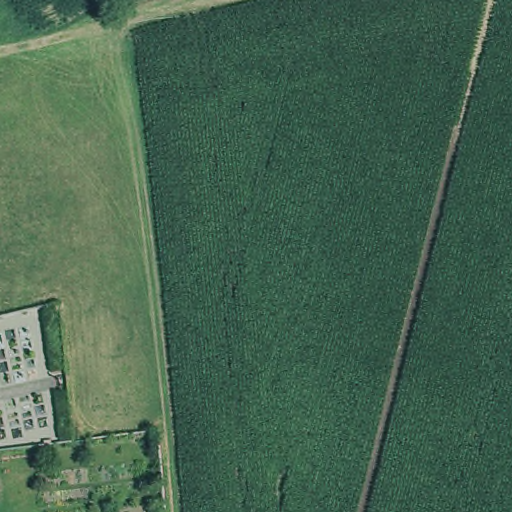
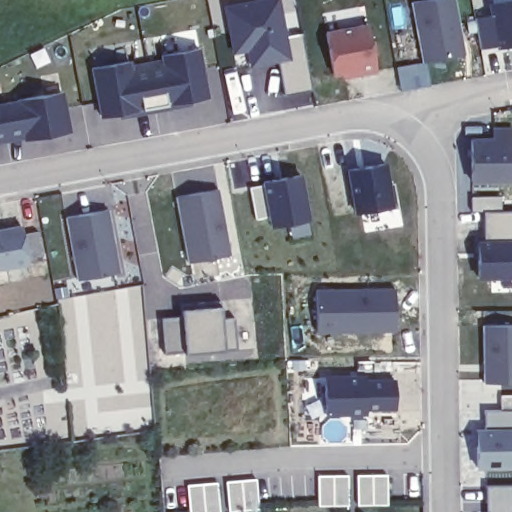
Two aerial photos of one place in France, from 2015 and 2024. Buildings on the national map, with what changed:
new [(310,89),(284,94),(278,62),(249,68),(245,52),(232,54),(222,4),(243,0),(280,0),(292,59),(294,65),(304,63),(310,89)]
new [(458,0),(467,52),(422,61),(414,3),(426,0),(458,0)]
new [(512,0),(512,47),(495,51),(489,4),(506,0),(512,0)]
new [(373,24),(380,71),(332,79),(329,35),(373,24)]
new [(200,48),(210,99),(100,122),(87,70),(200,48)]
new [(72,131),(0,144),(0,98),(67,87),(72,131)]
new [(470,183),(469,137),(494,136),(494,128),(512,128),(512,182),(470,183)]
new [(355,216),(347,170),(387,163),(395,209),(355,216)]
new [(312,216),(275,227),(273,218),(260,222),(250,183),(306,171),(312,216)]
new [(188,265),(175,199),(219,190),(232,256),(188,265)]
new [(80,281),(67,217),(108,210),(121,274),(80,281)]
new [(27,232),(42,228),(52,274),(34,279),(31,264),(0,270),(0,228),(25,221),(27,232)]
new [(477,279),(477,241),(512,240),(512,279),(477,279)]
new [(397,336),(316,338),(316,287),(395,286),(397,336)]
new [(167,358),(162,318),(182,316),(180,307),(220,303),(222,320),(234,318),(237,349),(167,358)]
new [(485,384),(483,326),(512,325),(512,383),(485,384)]
new [(400,418),(322,419),(324,375),(398,375),(400,418)]
new [(512,408),(512,468),(478,470),(478,426),(486,426),(487,410),(512,408)]
new [(388,475),(390,507),(359,504),(357,472),(388,475)]
new [(352,475),(352,507),(320,508),(320,475),(352,475)]
new [(259,476),(262,509),(230,511),(228,479),(259,476)]
new [(512,483),(512,512),(488,512),(487,485),(512,483)]
new [(220,484),(222,512),(189,512),(189,484),(220,484)]

